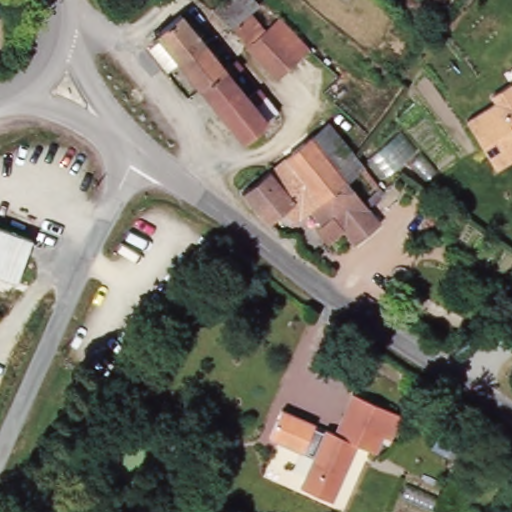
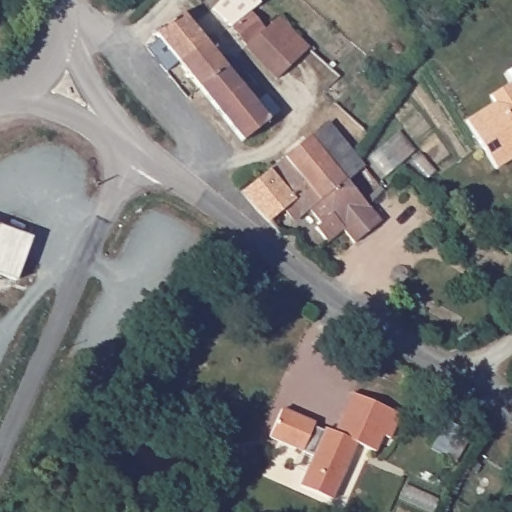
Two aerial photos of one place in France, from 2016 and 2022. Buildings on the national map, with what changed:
unchanged [(312,46),(310,48),(279,78),(247,45),(234,30),(216,9),(224,0),(254,0),(255,1),(258,4),(261,6),(269,15),(262,21),(266,26),(268,28),(281,15),(282,15),(312,46)]
unchanged [(216,55),(190,75),(180,83),(169,71),(168,54),(168,46),(189,21),(216,55)]
unchanged [(236,79),(211,101),(190,75),(216,55),(236,79)]
unchanged [(249,72),(255,80),(244,90),(260,110),(271,101),(278,109),(266,118),(280,135),(255,155),(211,101),(236,81),(249,72)]
unchanged [(495,172),(467,122),(496,105),(492,98),(512,86),(512,162),(495,172)]
unchanged [(330,116),(365,159),(348,173),(310,131),(330,116)]
unchanged [(310,133),(310,131),(348,173),(347,174),(325,196),(317,188),(287,151),(310,133)]
unchanged [(286,151),(287,151),(317,188),(325,196),(347,174),(348,173),(370,200),(382,215),(353,233),(347,227),(340,220),(326,235),(313,221),(318,216),(305,203),(290,217),(280,206),(266,219),(255,206),(244,186),(286,151)]
unchanged [(20,279),(0,272),(0,225),(34,236),(20,279)]
unchanged [(340,415),(349,391),(398,410),(389,434),(381,431),(375,450),(358,444),(338,498),(300,484),(311,455),(269,440),(279,412),(313,425),(325,429),(334,432),(340,415)]

